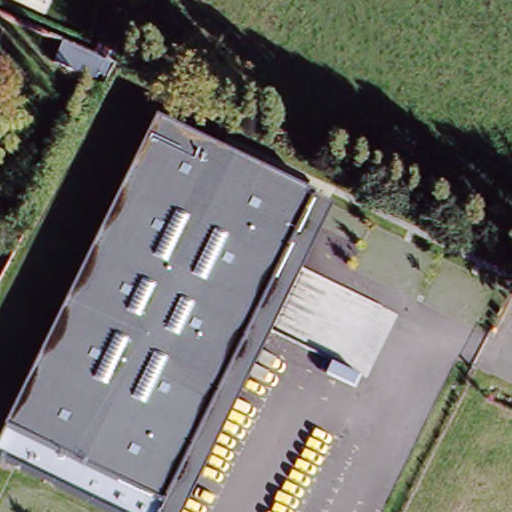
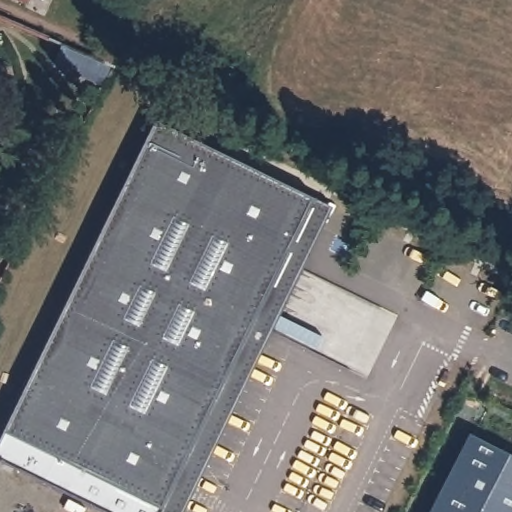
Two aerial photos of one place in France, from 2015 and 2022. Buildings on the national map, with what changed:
new [(30,4),(21,0),(31,0),(30,4)]
unchanged [(97,87),(55,69),(65,46),(77,51),(95,59),(102,43),(119,49),(111,67),(117,69),(117,70),(110,84),(100,80),(97,87)]
unchanged [(183,512),(99,512),(0,461),(0,444),(155,124),(334,209),(183,512)]
new [(481,430),(478,435),(506,449),(503,454),(510,457),(512,453),(512,512),(429,512),(472,426),(481,430)]

